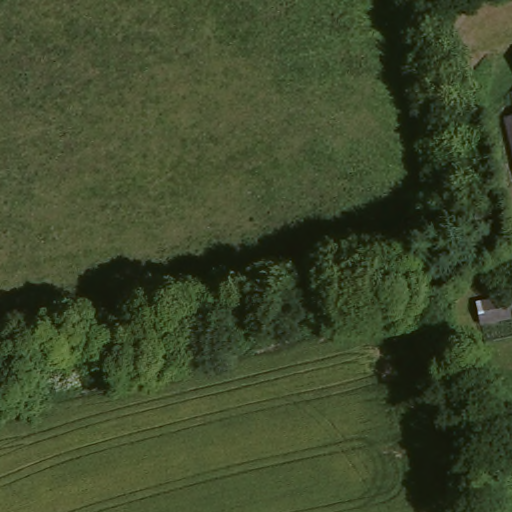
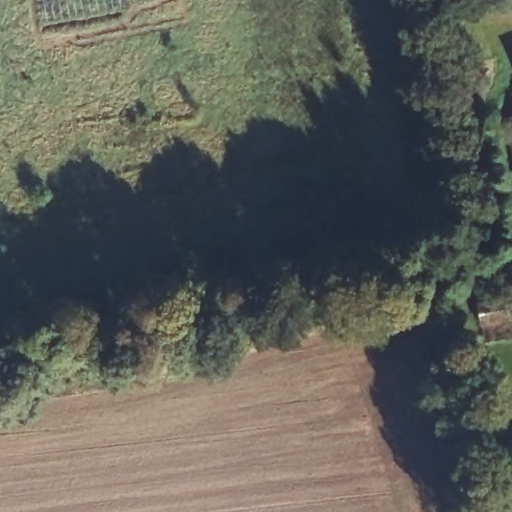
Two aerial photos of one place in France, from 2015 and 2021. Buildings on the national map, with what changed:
unchanged [(508,46),(512,46),(512,66),(508,46)]
unchanged [(502,120),(511,118),(506,94),(512,93),(512,177),(502,120)]
unchanged [(477,306),(493,304),(512,300),(512,319),(482,325),(476,308),(477,306)]

